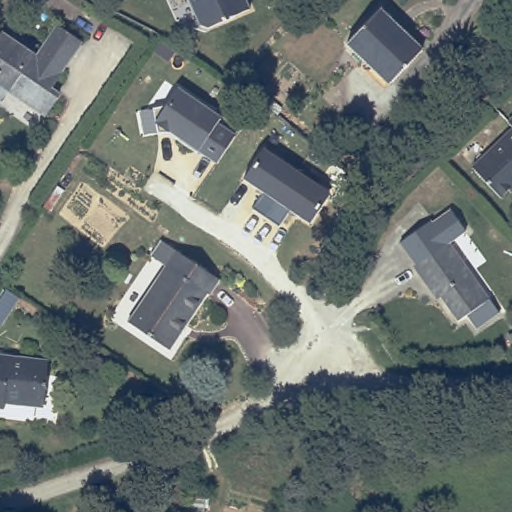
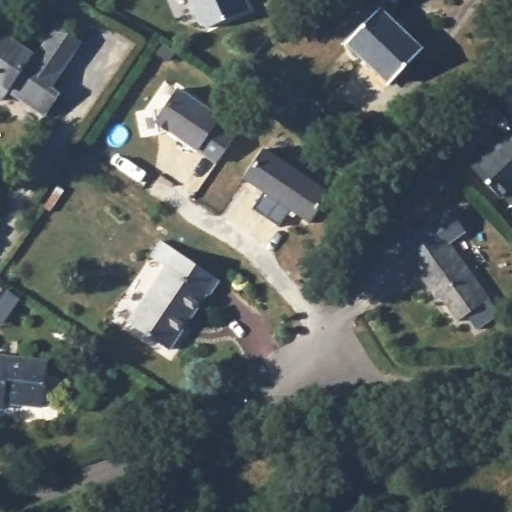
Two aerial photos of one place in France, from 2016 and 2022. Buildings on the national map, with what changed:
unchanged [(252,11),(211,30),(204,27),(191,0),(247,0),(252,11)]
unchanged [(381,11),(422,50),(391,83),(349,43),(381,11)]
unchanged [(2,104),(0,103),(0,43),(5,36),(39,59),(48,46),(58,31),(82,47),(72,62),(59,81),(52,91),(62,97),(46,121),(20,104),(7,96),(2,104)]
unchanged [(237,140),(219,165),(201,152),(199,154),(179,140),(181,137),(174,132),(161,134),(157,107),(170,106),(182,89),(225,121),(221,126),(238,139),(237,140)]
unchanged [(512,125),(512,132),(509,128),(512,125)]
unchanged [(473,171),(512,137),(512,189),(500,200),(473,171)]
unchanged [(266,220),(252,211),(263,194),(244,181),(263,151),(297,173),(297,174),(266,220)]
unchanged [(297,174),(330,196),(310,226),(290,212),(278,229),(266,220),(297,174)]
unchanged [(162,244),(220,282),(210,297),(207,295),(169,350),(128,323),(166,267),(152,258),(162,244)]
unchanged [(496,300),(455,328),(416,274),(453,246),(496,300)]
unchanged [(7,292),(0,303),(0,287),(7,292)]
unchanged [(53,362),(48,409),(10,404),(9,409),(0,408),(0,355),(53,362)]

